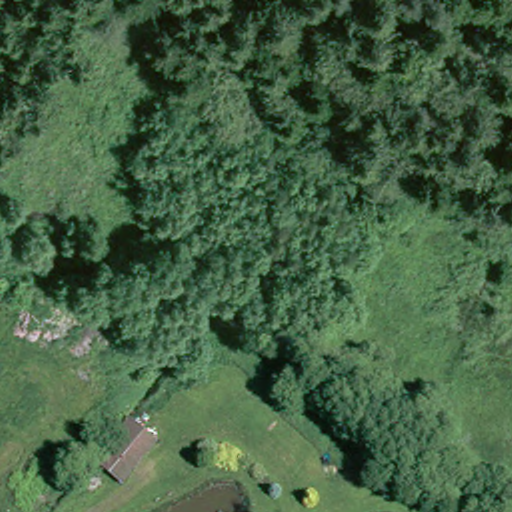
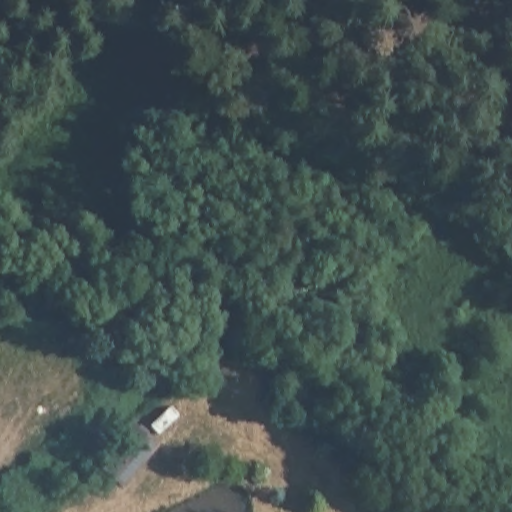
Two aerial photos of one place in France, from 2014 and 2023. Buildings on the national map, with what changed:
unchanged [(96,465),(134,421),(160,450),(122,490),(96,465)]

